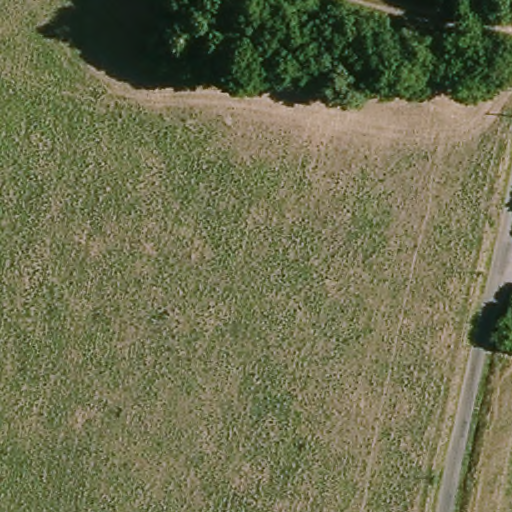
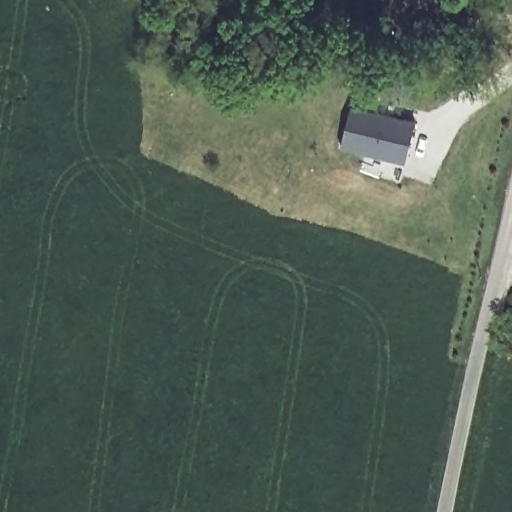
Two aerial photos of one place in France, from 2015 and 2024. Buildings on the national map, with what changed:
new [(352,105),(417,120),(407,160),(343,145),(352,105)]

